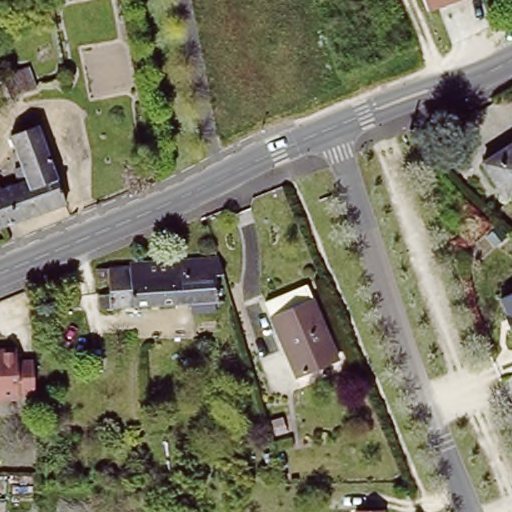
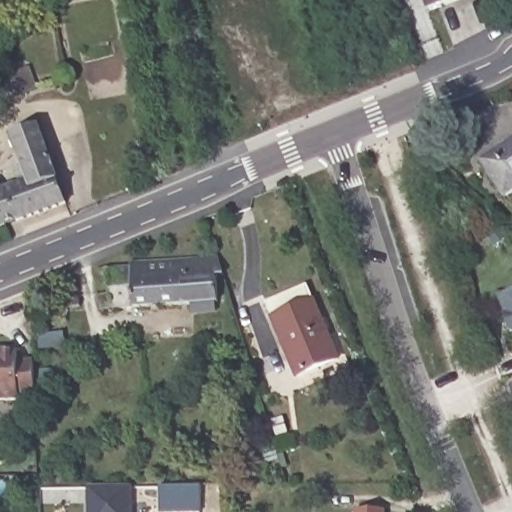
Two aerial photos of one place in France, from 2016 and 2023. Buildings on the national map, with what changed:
unchanged [(427,11),(423,0),(457,0),(427,11)]
unchanged [(6,91),(0,70),(22,64),(30,85),(6,91)]
unchanged [(67,203),(0,226),(0,175),(15,170),(10,155),(19,152),(12,133),(37,124),(67,203)]
unchanged [(512,184),(495,151),(512,143),(512,184)]
unchanged [(218,274),(219,300),(101,307),(100,294),(112,293),(111,277),(99,278),(98,268),(132,266),(133,262),(155,260),(220,256),(225,273),(218,274)]
unchanged [(265,301),(306,285),(337,359),(296,375),(265,301)]
unchanged [(512,310),(505,293),(512,290),(512,310)]
unchanged [(0,344),(17,343),(17,356),(32,355),(33,387),(18,388),(18,393),(0,394),(0,349),(0,344)]
new [(131,485),(131,512),(87,512),(87,485),(131,485)]
new [(158,485),(198,486),(198,512),(171,512),(157,511),(158,485)]
unchanged [(380,505),(381,512),(354,512),(353,505),(380,505)]

